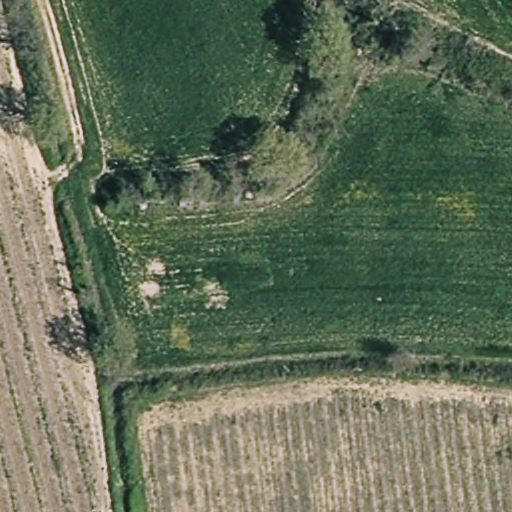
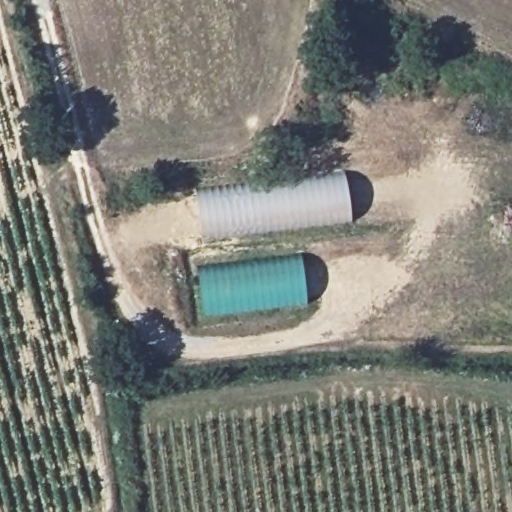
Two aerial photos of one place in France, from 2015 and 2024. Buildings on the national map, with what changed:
new [(349,217),(200,235),(193,185),(342,165),(349,217)]
new [(306,303),(205,315),(198,270),(301,255),(306,303)]

